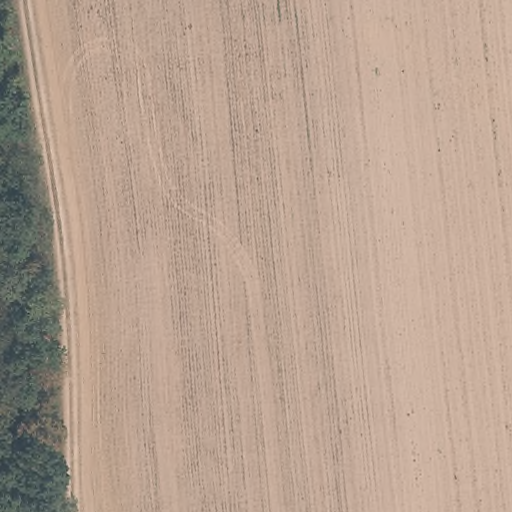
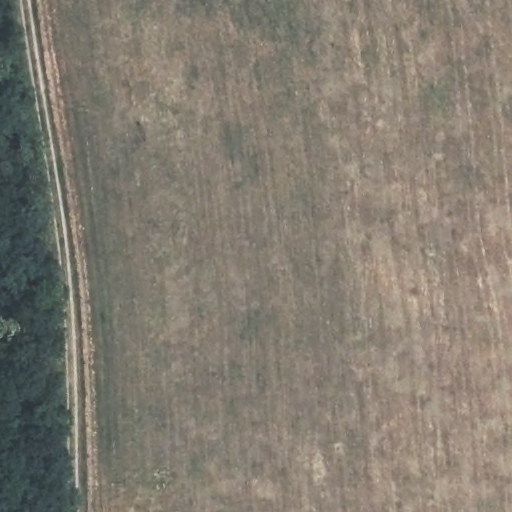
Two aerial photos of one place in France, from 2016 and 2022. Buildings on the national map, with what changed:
[]

